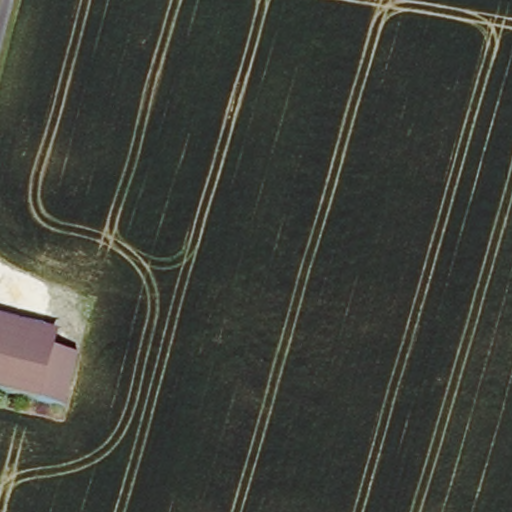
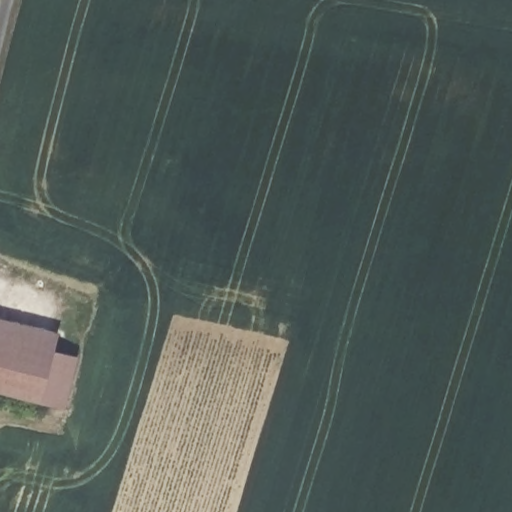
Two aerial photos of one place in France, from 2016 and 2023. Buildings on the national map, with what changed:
unchanged [(55,337),(50,353),(75,361),(57,411),(0,395),(0,320),(55,337)]

